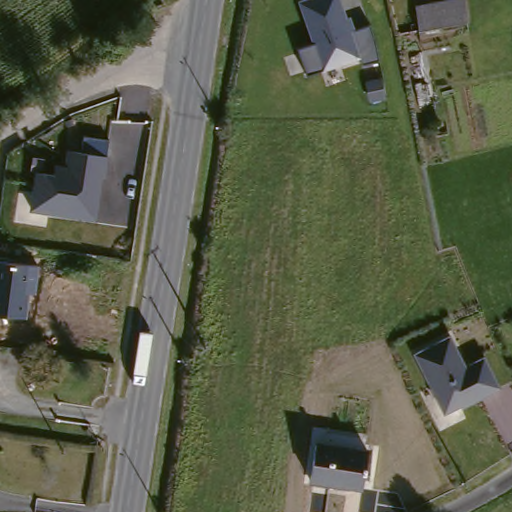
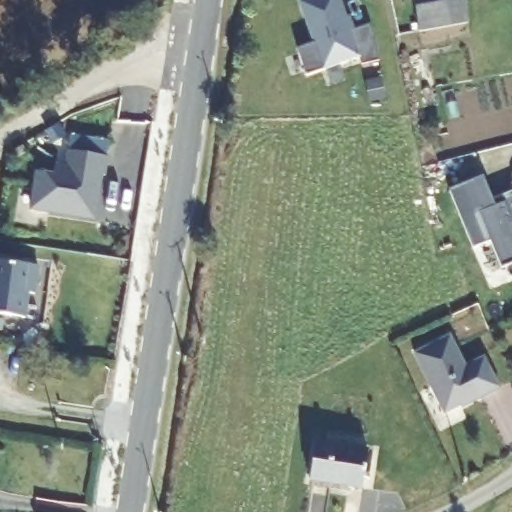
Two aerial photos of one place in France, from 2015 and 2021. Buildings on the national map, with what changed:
unchanged [(372,21),(381,53),(360,62),(357,53),(300,69),(295,47),(309,42),(297,0),(344,0),(353,25),(372,21)]
unchanged [(425,35),(425,7),(464,0),(470,0),(471,27),(425,35)]
unchanged [(95,218),(30,210),(37,170),(55,172),(57,162),(66,164),(69,149),(81,151),(84,137),(110,141),(95,218)]
new [(512,188),(512,259),(502,263),(491,238),(472,245),(448,186),(481,174),(491,195),(512,188)]
unchanged [(34,293),(29,292),(24,317),(0,314),(0,257),(41,262),(34,293)]
unchanged [(451,337),(468,367),(486,358),(498,385),(445,413),(414,353),(451,337)]
unchanged [(368,446),(363,487),(315,482),(320,441),(368,446)]

